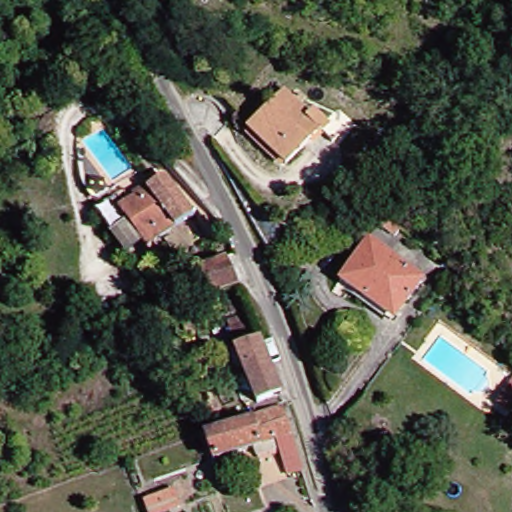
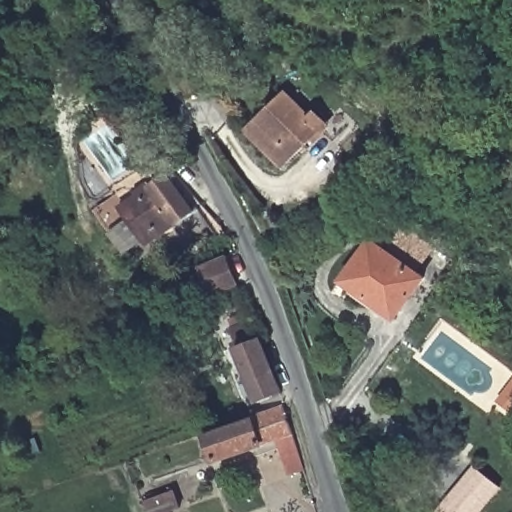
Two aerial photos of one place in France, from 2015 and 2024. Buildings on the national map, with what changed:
unchanged [(284,91),(309,115),(316,108),(330,122),(324,129),(320,126),(286,162),(249,127),(284,91)]
unchanged [(142,235),(123,202),(139,193),(134,185),(149,176),(154,184),(171,175),(195,217),(163,235),(148,244),(142,235)]
unchanged [(370,243),(422,280),(394,321),(342,282),(370,243)]
unchanged [(233,285),(201,295),(191,268),(222,258),(233,285)]
unchanged [(227,311),(221,300),(232,294),(237,307),(227,311)]
unchanged [(255,408),(233,354),(225,336),(240,329),(248,347),(260,342),(277,398),(255,408)]
new [(512,410),(499,401),(512,382),(512,410)]
unchanged [(291,421),(302,462),(289,467),(279,442),(217,465),(208,438),(287,407),(291,421)]
new [(480,512),(437,512),(473,467),(499,488),(480,512)]
unchanged [(178,508),(168,512),(148,512),(144,500),(172,490),(178,508)]

